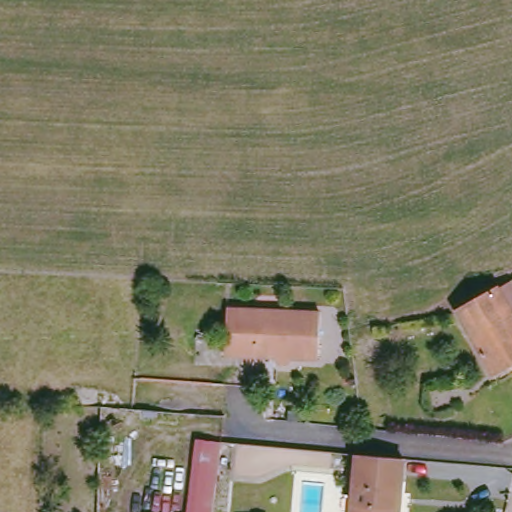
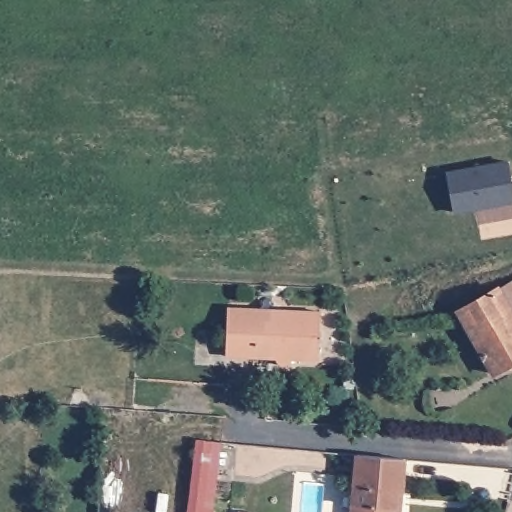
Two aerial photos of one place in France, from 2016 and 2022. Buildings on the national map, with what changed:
new [(446,172),(507,161),(512,188),(512,203),(452,214),(446,172)]
unchanged [(512,317),(512,361),(489,373),(455,311),(509,281),(512,287),(512,310),(509,312),(512,317)]
unchanged [(324,307),(322,354),(296,353),(295,355),(295,356),(294,357),(292,358),(292,359),(290,360),(289,360),(287,360),(285,359),(284,359),(283,358),(282,357),(281,356),(281,354),(280,353),(280,352),(231,350),(232,303),(324,307)]
unchanged [(213,445),(206,512),(191,512),(198,444),(203,444),(213,445)]
unchanged [(403,512),(357,512),(362,450),(408,453),(406,483),(404,504),(403,512)]

